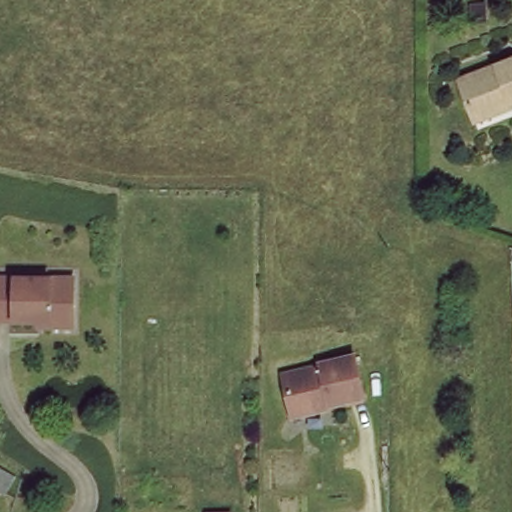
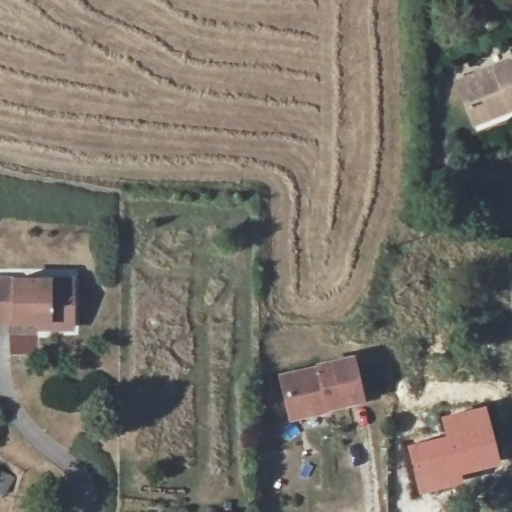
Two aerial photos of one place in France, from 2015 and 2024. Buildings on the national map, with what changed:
unchanged [(472,130),(467,115),(456,81),(512,61),(512,107),(503,110),(506,120),(472,130)]
unchanged [(36,321),(0,323),(0,282),(70,278),(71,320),(71,328),(38,330),(36,321)]
unchanged [(290,412),(289,406),(281,370),(319,362),(319,360),(353,352),(361,394),(328,401),(328,404),(290,412)]
new [(443,432),(439,415),(485,404),(500,465),(463,474),(465,482),(419,495),(404,443),(443,432)]

